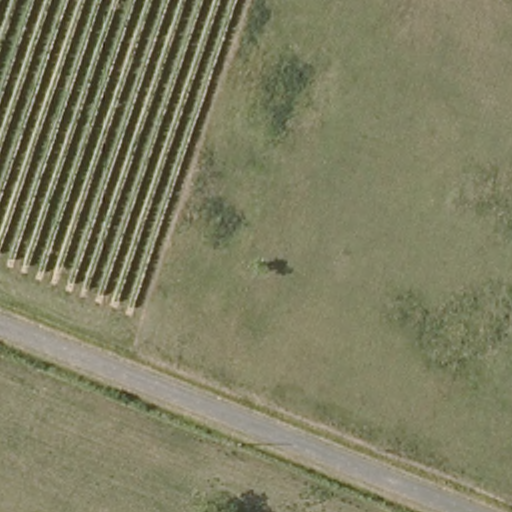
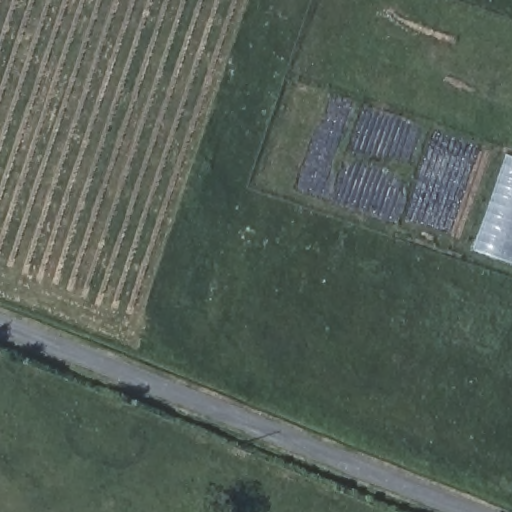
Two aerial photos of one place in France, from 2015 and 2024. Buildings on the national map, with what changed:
new [(512,156),(512,263),(473,251),(507,154),(512,156)]

